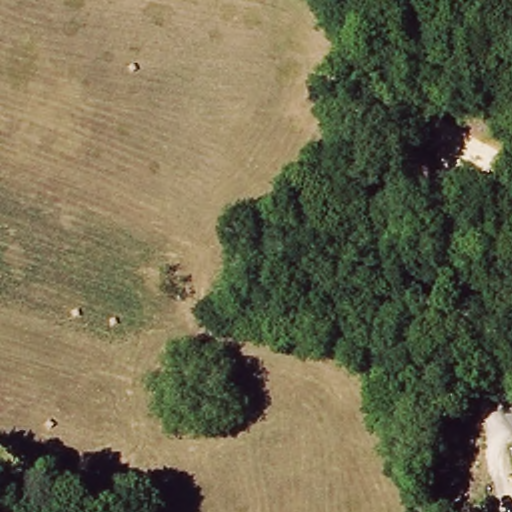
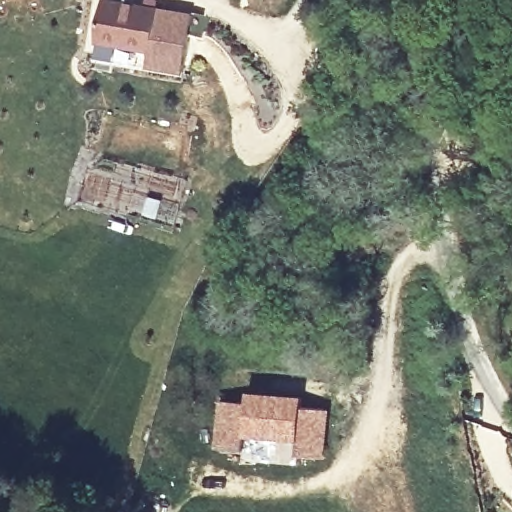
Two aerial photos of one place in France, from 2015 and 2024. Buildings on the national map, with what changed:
new [(150,53),(97,44),(104,0),(118,0),(192,14),(182,73),(148,69),(150,53)]
new [(327,457),(298,455),(297,441),(245,437),(243,448),(215,447),(219,400),(247,403),(249,391),(302,396),(301,408),(329,409),(327,457)]

